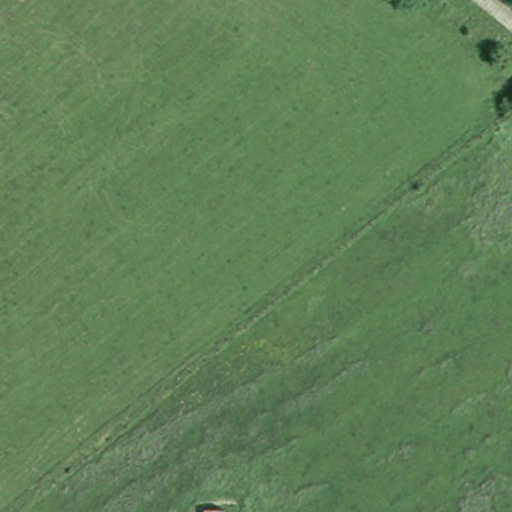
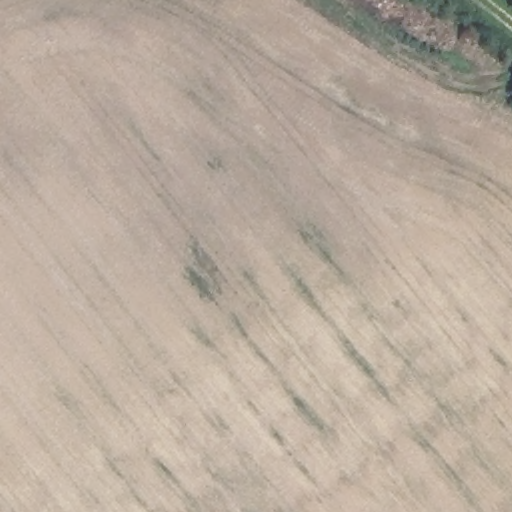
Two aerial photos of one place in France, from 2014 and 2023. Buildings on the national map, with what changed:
[]

